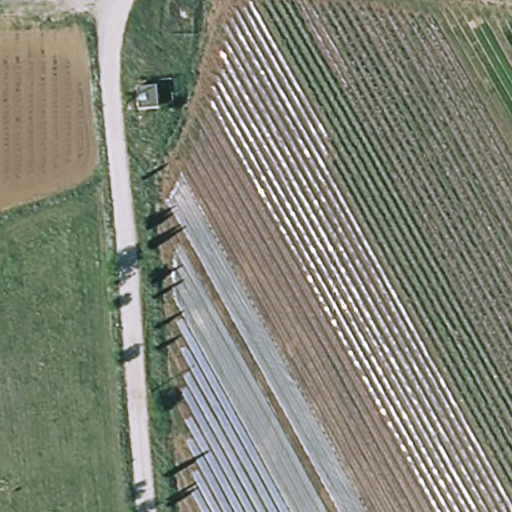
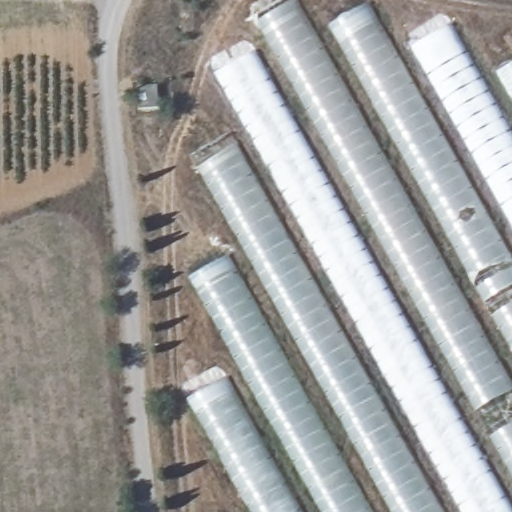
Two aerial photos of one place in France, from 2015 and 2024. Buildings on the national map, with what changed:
new [(244,370),(191,277),(241,249),(190,158),(247,125),(217,75),(271,45),(255,17),(286,0),(298,0),(316,32),(370,2),(400,54),(455,22),(485,77),(512,62),(512,512),(253,512),(190,399),(244,370)]
unchanged [(141,112),(139,89),(157,86),(161,109),(141,112)]

